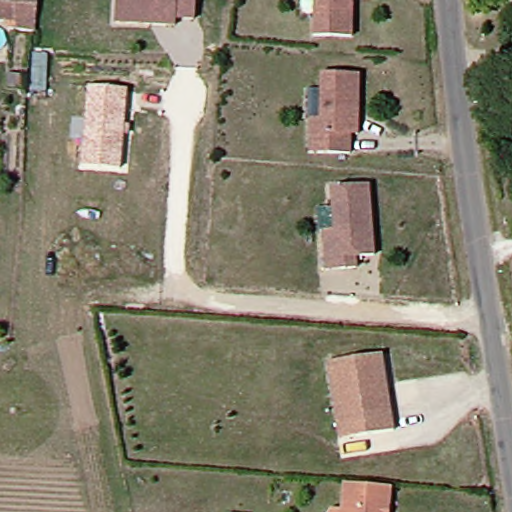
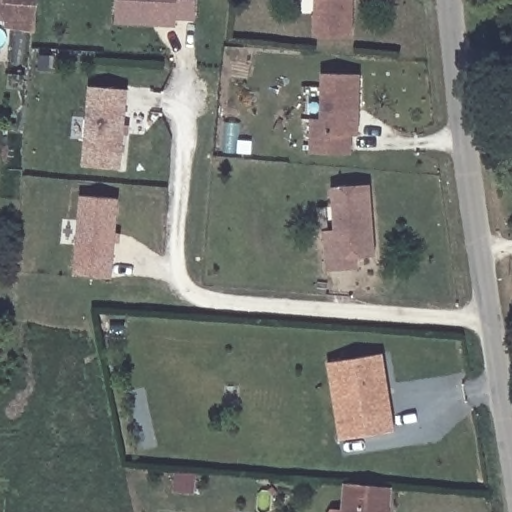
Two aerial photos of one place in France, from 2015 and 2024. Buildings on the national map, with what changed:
unchanged [(25,0),(23,20),(22,23),(0,21),(0,0),(25,0)]
unchanged [(117,18),(119,0),(199,0),(197,19),(179,16),(177,24),(154,22),(117,18)]
unchanged [(313,0),(351,0),(351,31),(312,30),(313,0)]
unchanged [(349,138),(348,156),(308,155),(308,121),(318,121),(320,76),(358,78),(357,114),(357,138),(349,138)]
unchanged [(121,170),(82,166),(89,87),(127,90),(121,170)]
unchanged [(343,268),(323,269),(321,229),(332,229),(330,187),(367,184),(372,255),(351,257),(352,268),(343,268)]
new [(113,281),(74,279),(80,198),(119,200),(113,281)]
unchanged [(390,429),(352,435),(345,384),(328,387),(324,361),(378,352),(390,429)]
unchanged [(334,506),(344,507),(347,481),(366,483),(391,485),(388,512),(331,512),(334,506)]

